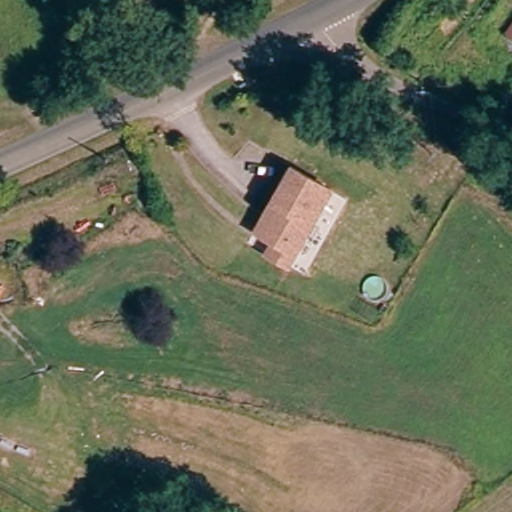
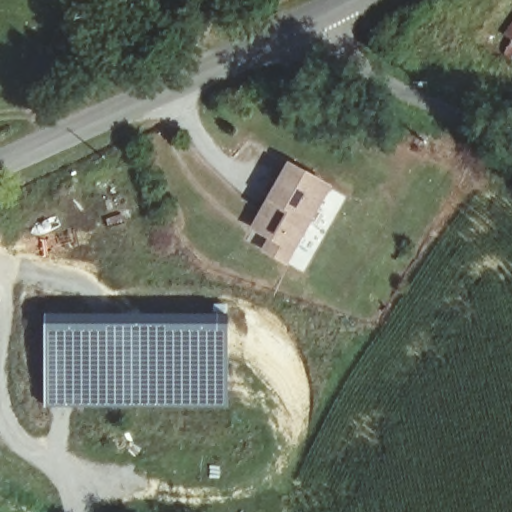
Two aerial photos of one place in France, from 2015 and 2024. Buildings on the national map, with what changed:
unchanged [(257,249),(265,237),(252,229),(247,226),(265,198),(287,165),(326,189),(286,250),(278,262),(257,249)]
new [(43,314),(90,315),(90,320),(194,321),(207,320),(207,315),(226,314),(227,408),(89,407),(43,409),(43,314)]

